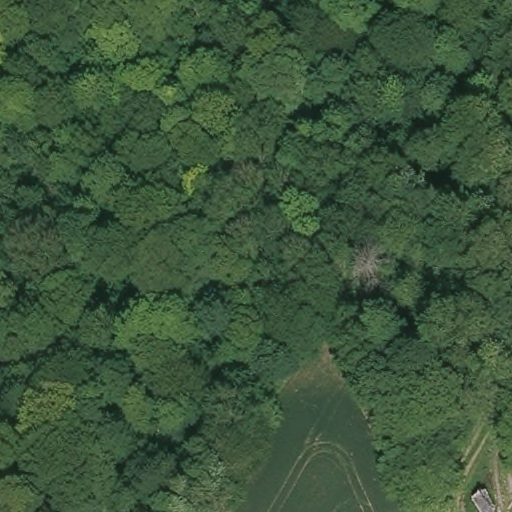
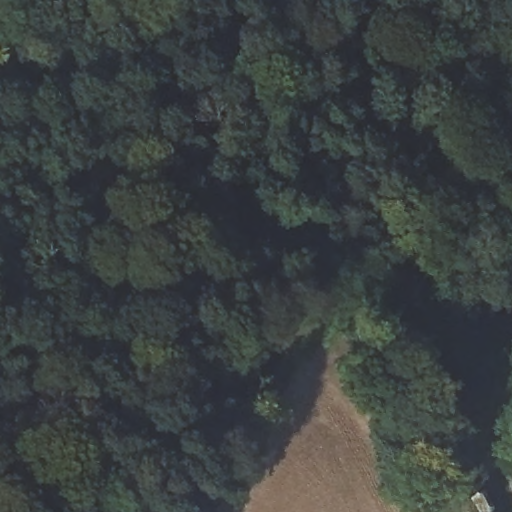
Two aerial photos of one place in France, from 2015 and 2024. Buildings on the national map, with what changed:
unchanged [(501,512),(478,512),(468,493),(483,483),(501,512)]

